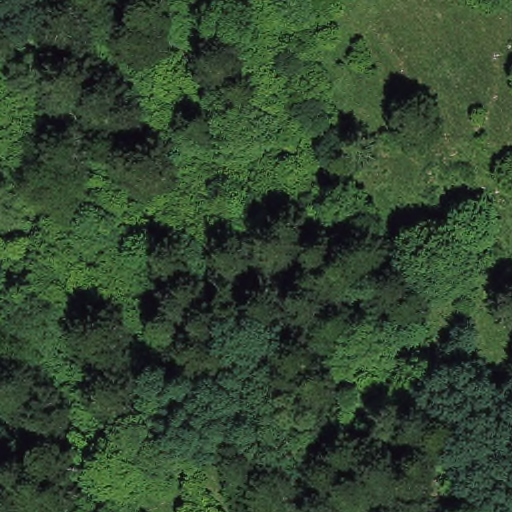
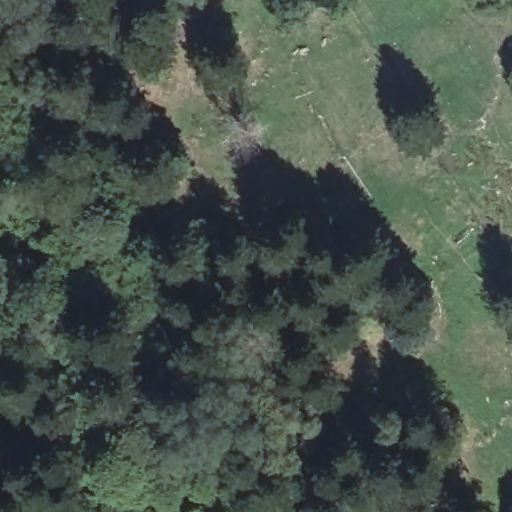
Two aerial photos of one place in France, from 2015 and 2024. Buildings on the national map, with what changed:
[]

